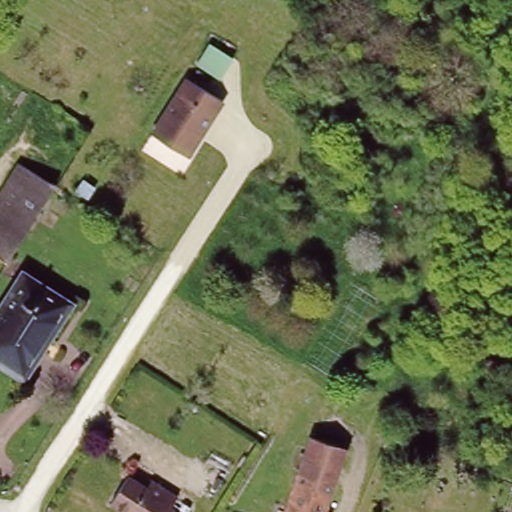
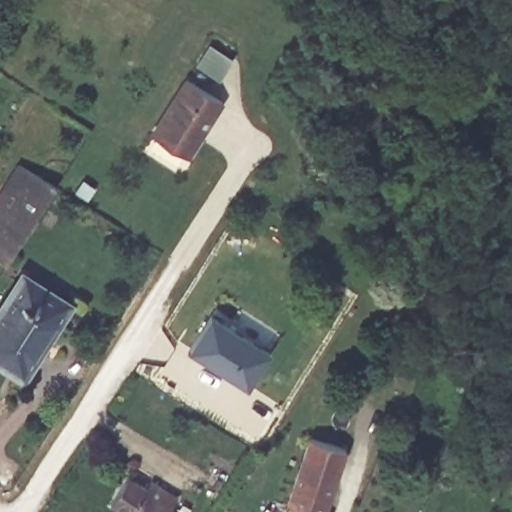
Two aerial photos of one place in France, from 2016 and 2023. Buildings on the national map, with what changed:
unchanged [(152,135),(187,81),(222,104),(187,157),(152,135)]
unchanged [(0,201),(0,200),(23,163),(60,186),(52,200),(37,225),(0,201)]
unchanged [(12,262),(0,254),(0,201),(37,225),(12,262)]
unchanged [(0,365),(0,296),(17,270),(67,301),(19,377),(0,365)]
new [(247,385),(189,348),(210,313),(269,351),(247,385)]
unchanged [(485,375),(491,358),(503,362),(499,378),(485,375)]
unchanged [(335,496),(299,483),(315,435),(352,448),(335,496)]
unchanged [(133,473),(152,485),(157,476),(182,492),(174,504),(186,512),(138,512),(117,499),(133,473)]
unchanged [(332,512),(288,512),(299,483),(335,496),(329,511),(332,512)]

